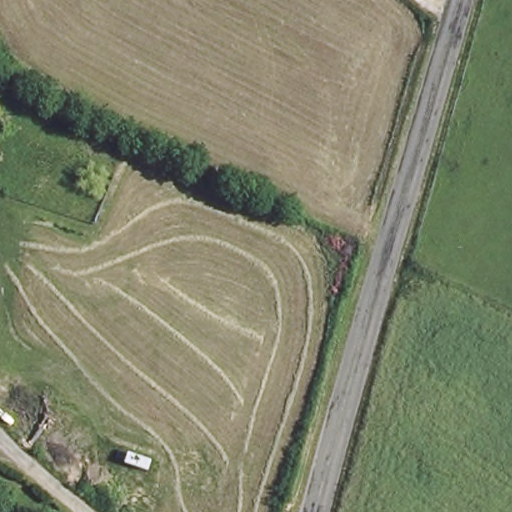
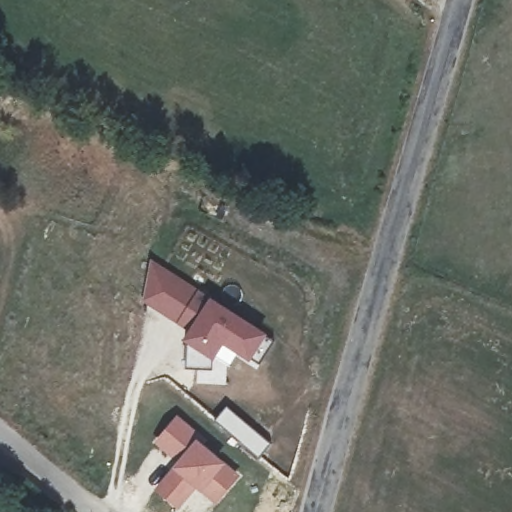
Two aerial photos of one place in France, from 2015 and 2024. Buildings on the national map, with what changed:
new [(183,340),(189,332),(176,324),(143,303),(150,258),(199,289),(211,297),(268,334),(266,337),(273,342),(260,363),(251,358),(249,361),(223,344),(212,360),(211,369),(185,369),(183,340)]
new [(172,466),(177,461),(153,442),(177,414),(201,434),(197,439),(225,463),(241,475),(215,505),(201,492),(196,488),(178,510),(153,488),(172,466)]

